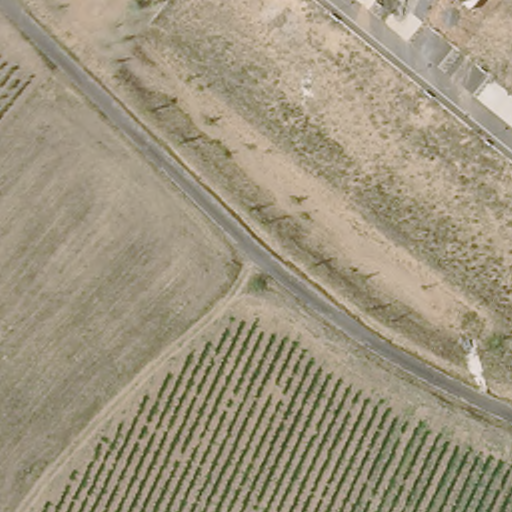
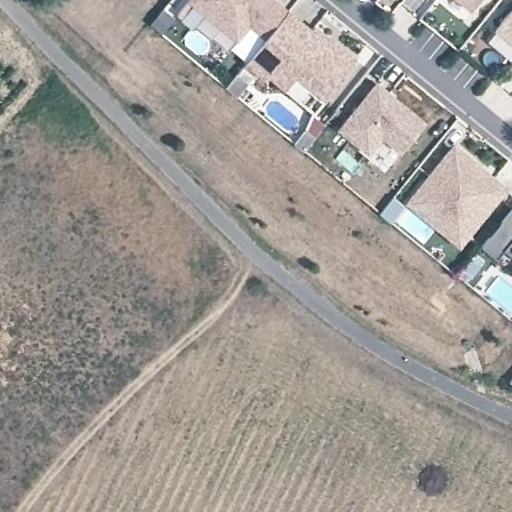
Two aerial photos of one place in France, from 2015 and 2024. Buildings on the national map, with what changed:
new [(179,13),(175,10),(184,0),(190,0),(179,13)]
new [(287,7),(265,34),(249,21),(236,36),(191,0),(279,0),(287,7)]
unchanged [(470,8),(461,0),(477,0),(470,8)]
new [(285,85),(268,71),(265,75),(244,59),(265,34),(287,7),(311,26),(314,22),(357,57),(325,95),(314,109),(285,85)]
new [(512,7),(512,40),(496,26),(512,7)]
new [(377,80),(425,120),(401,148),(381,132),(368,149),(339,125),(377,80)]
new [(454,143),(505,186),(459,242),(408,199),(454,143)]
new [(505,248),(498,257),(481,244),(512,208),(512,254),(505,248)]

